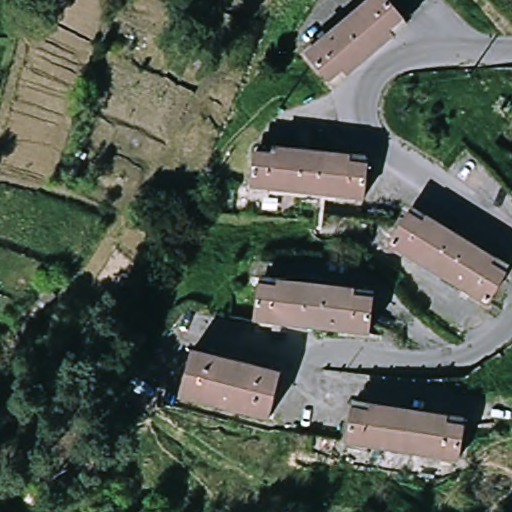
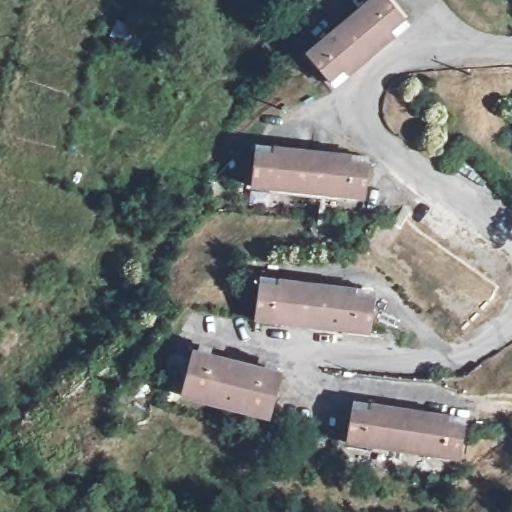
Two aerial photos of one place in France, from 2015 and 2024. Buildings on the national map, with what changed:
unchanged [(399,29),(403,34),(355,72),(351,68),(335,81),(312,53),(379,0),(395,0),(411,19),(399,29)]
unchanged [(255,154),(276,155),(276,149),(351,154),(350,161),(367,163),(365,192),(253,184),(255,154)]
demolished [(414,213),(428,221),(433,214),(501,254),(496,262),(511,273),(493,299),(397,240),(414,213)]
unchanged [(286,279),(359,287),(358,295),(377,298),(374,333),(261,322),(263,287),(285,288),(286,279)]
unchanged [(278,371),(268,416),(185,394),(193,353),(278,371)]
unchanged [(354,403),(373,406),(375,397),(450,408),(449,416),(466,419),(460,454),(348,437),(354,403)]

